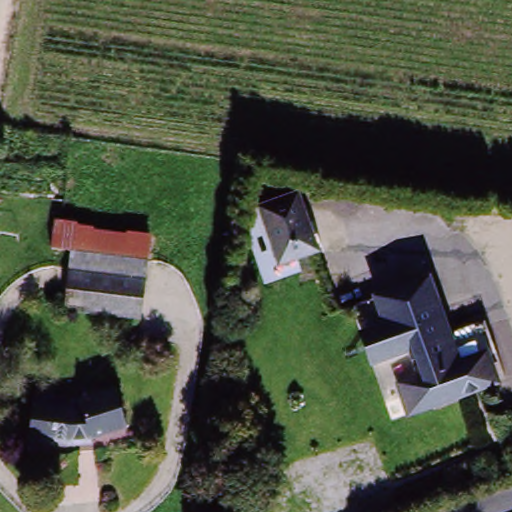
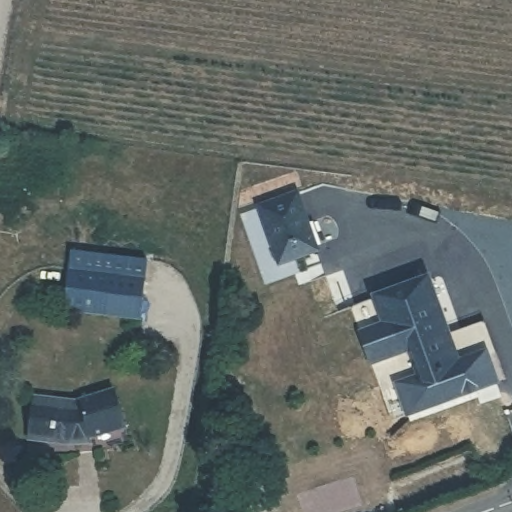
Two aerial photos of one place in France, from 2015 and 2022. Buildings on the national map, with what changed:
unchanged [(293,197),(316,254),(281,266),(258,209),(293,197)]
unchanged [(49,244),(51,220),(149,233),(147,257),(74,248),(49,244)]
unchanged [(147,257),(149,257),(141,319),(67,310),(74,248),(147,257)]
unchanged [(494,384),(408,414),(400,387),(418,381),(409,354),(370,368),(358,338),(348,312),(372,303),(426,284),(449,337),(484,324),(495,356),(504,380),(494,384)]
unchanged [(54,410),(54,399),(74,402),(107,392),(120,430),(73,443),(32,442),(35,408),(54,410)]

